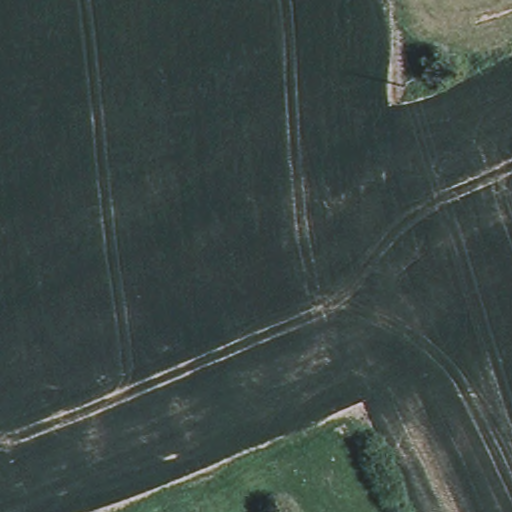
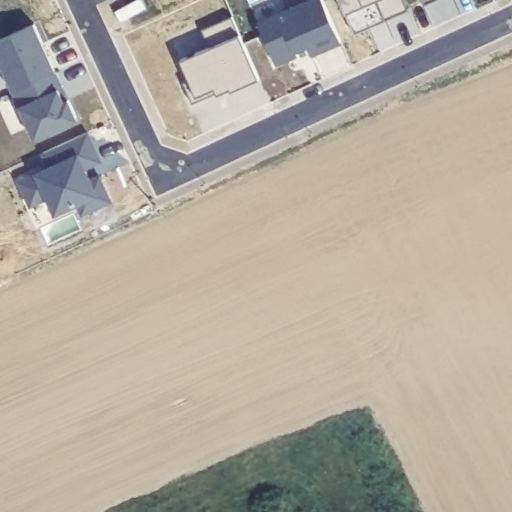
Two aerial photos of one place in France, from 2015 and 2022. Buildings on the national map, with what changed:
new [(289,9),(285,0),(308,0),(308,1),(310,0),(323,0),(341,40),(311,53),(306,44),(294,50),(296,55),(275,64),(257,23),(289,9)]
new [(368,27),(354,33),(339,0),(405,0),(408,7),(386,17),(387,19),(368,27)]
new [(423,4),(421,0),(433,0),(423,4)]
new [(208,47),(200,30),(231,16),(259,78),(231,91),(229,89),(216,95),(216,92),(191,104),(181,82),(188,80),(179,60),(208,47)]
new [(41,45),(39,45),(45,58),(47,56),(54,72),(11,92),(0,67),(0,39),(32,25),(41,45)]
new [(61,88),(67,100),(76,120),(33,140),(11,92),(54,72),(61,88)]
new [(48,168),(40,154),(84,133),(98,162),(82,169),(88,181),(96,177),(108,202),(80,215),(75,204),(53,214),(46,199),(28,206),(18,182),(48,168)]

